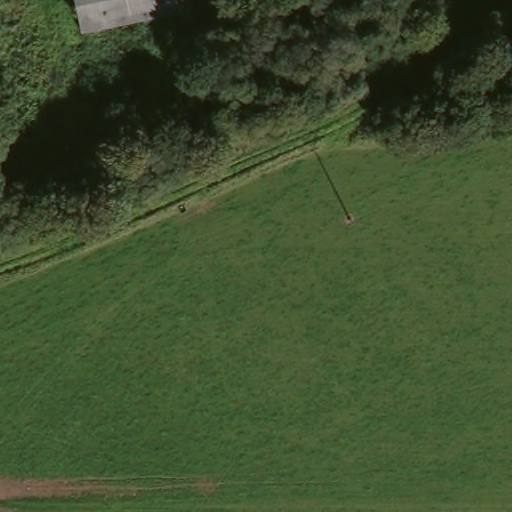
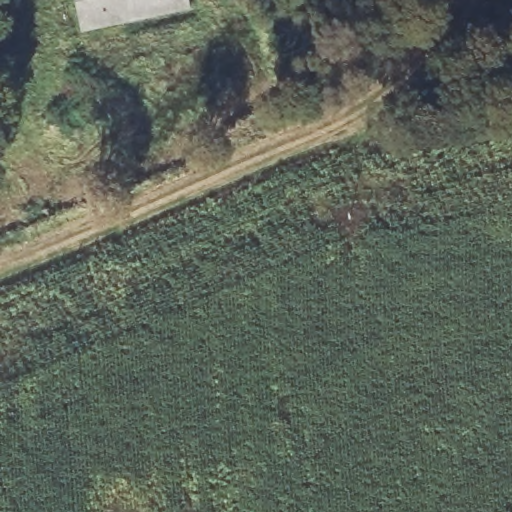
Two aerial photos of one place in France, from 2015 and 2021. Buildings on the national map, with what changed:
unchanged [(184,0),(187,15),(74,35),(68,0),(184,0)]

